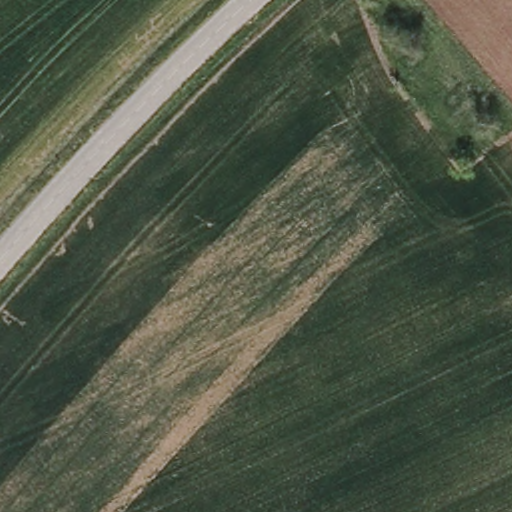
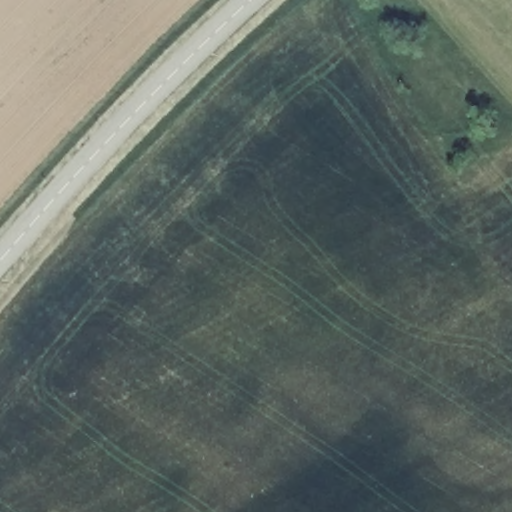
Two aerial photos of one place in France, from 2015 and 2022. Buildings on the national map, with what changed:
[]

